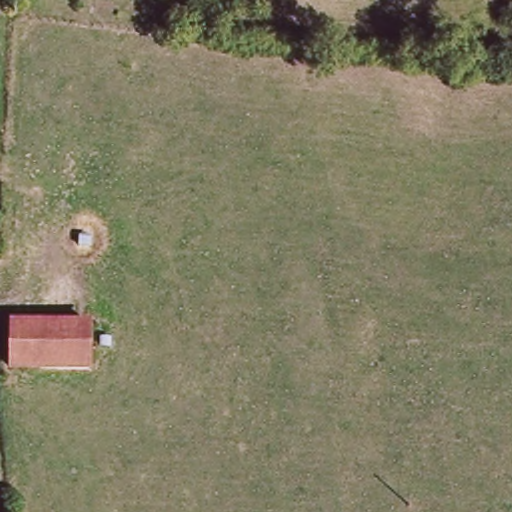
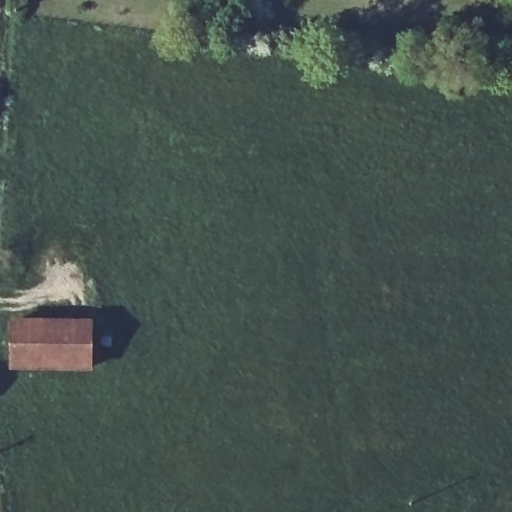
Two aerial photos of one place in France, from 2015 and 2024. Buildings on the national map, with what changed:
unchanged [(10,368),(12,322),(84,325),(82,371),(10,368)]

